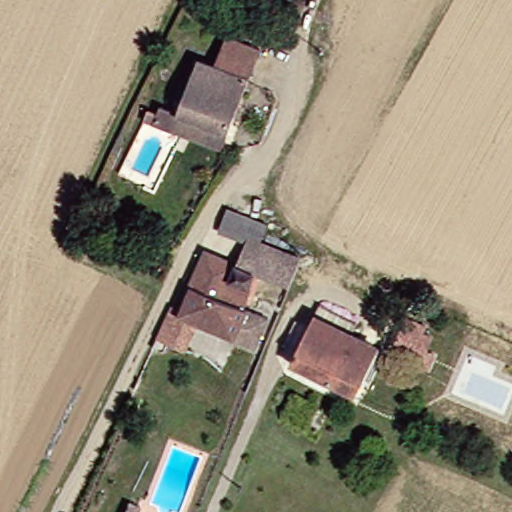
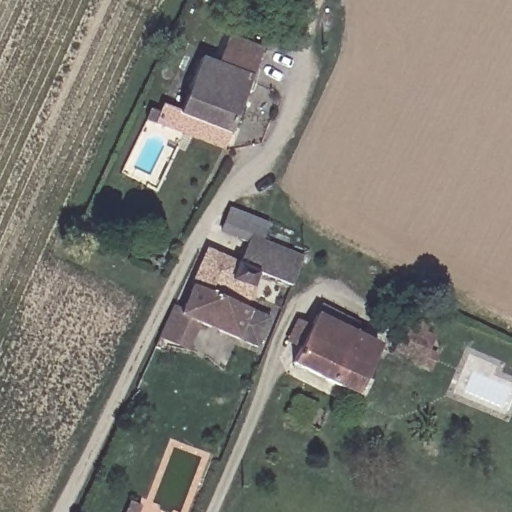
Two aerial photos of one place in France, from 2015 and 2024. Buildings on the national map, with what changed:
unchanged [(174,128),(180,115),(206,59),(223,66),(236,36),(269,50),(229,136),(222,150),(174,128)]
unchanged [(234,210),(271,222),(262,240),(307,256),(298,286),(264,272),(258,287),(248,305),(249,308),(274,319),(263,345),(241,337),(181,315),(194,281),(207,250),(244,266),(252,245),(224,230),(234,210)]
unchanged [(371,325),(366,335),(382,343),(359,392),(300,364),(328,305),(371,325)]

